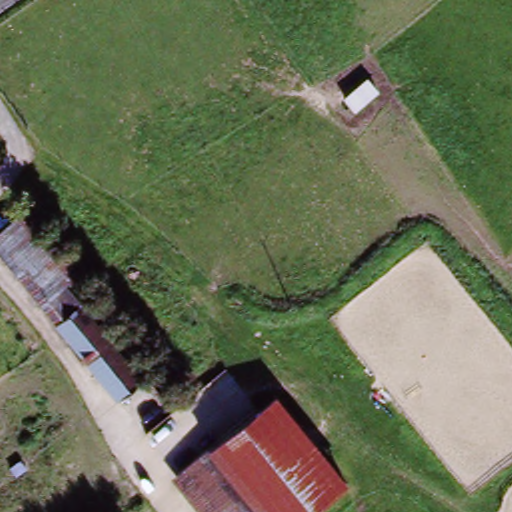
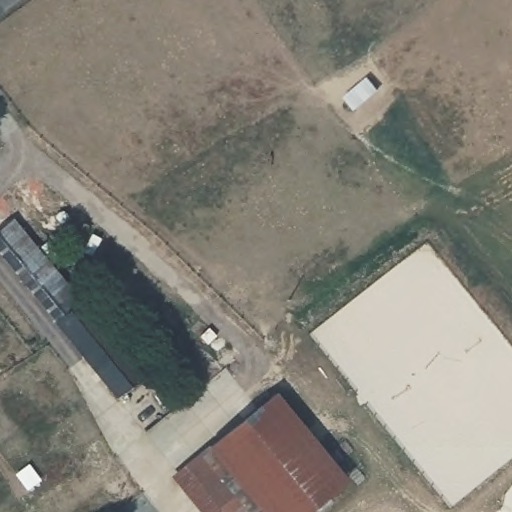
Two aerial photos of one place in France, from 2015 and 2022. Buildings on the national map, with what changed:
unchanged [(0,254),(0,225),(11,216),(141,380),(116,401),(0,254)]
unchanged [(165,473),(201,443),(218,430),(268,389),(343,481),(305,512),(196,512),(169,478),(165,473)]

